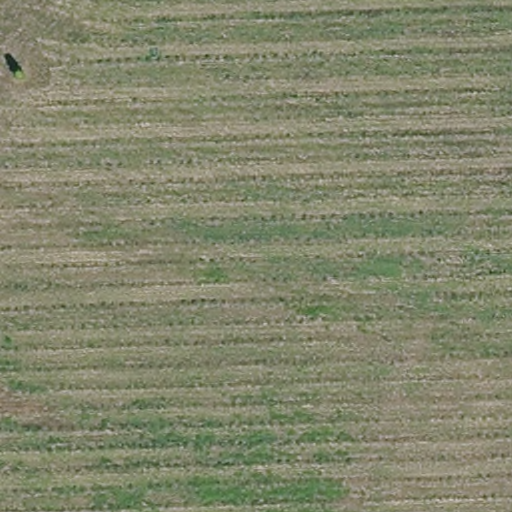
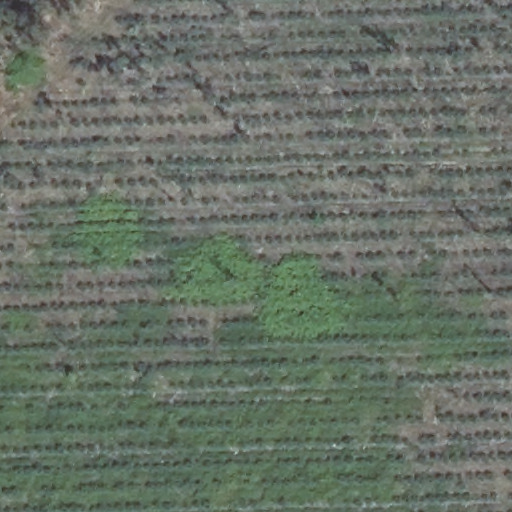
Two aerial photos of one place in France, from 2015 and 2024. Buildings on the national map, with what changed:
[]

